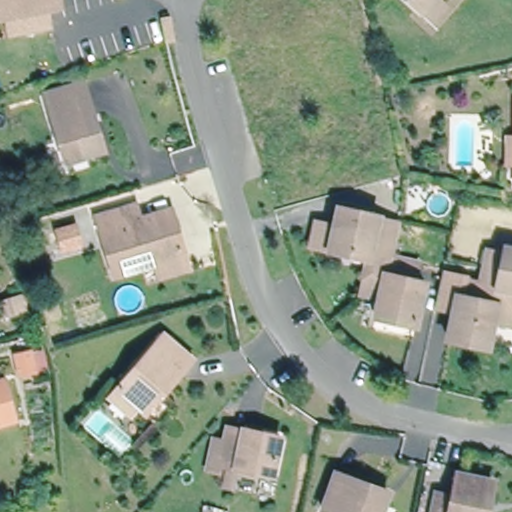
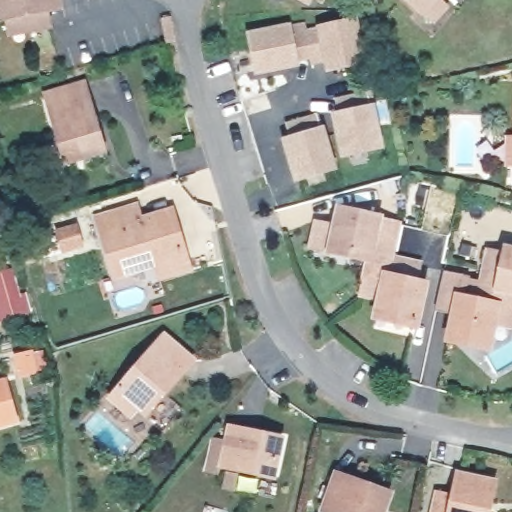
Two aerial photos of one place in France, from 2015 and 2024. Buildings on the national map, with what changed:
unchanged [(6,15),(0,16),(0,0),(58,0),(60,7),(44,9),(47,24),(9,30),(6,15)]
new [(311,6),(300,0),(314,0),(311,6)]
unchanged [(437,22),(427,12),(414,0),(444,0),(451,7),(437,22)]
new [(368,65),(328,73),(326,60),(301,66),(257,75),(246,33),(291,23),(292,24),(306,21),(308,29),(317,24),(360,17),(368,65)]
unchanged [(72,163),(57,111),(52,94),(89,83),(94,100),(109,152),(72,163)]
new [(376,104),(386,148),(342,156),(332,112),(340,110),(338,100),(373,92),(376,104)]
new [(339,171),(295,183),(283,139),(326,126),(339,171)]
unchanged [(512,135),(512,161),(510,161),(510,135),(512,135)]
unchanged [(158,272),(153,257),(146,260),(115,269),(97,211),(136,198),(141,213),(171,204),(183,243),(189,262),(158,272)]
unchanged [(382,313),(386,297),(366,293),(374,259),(338,251),(338,256),(328,254),(308,250),(314,219),(332,223),(336,204),(348,207),(387,216),(386,219),(405,223),(398,258),(426,265),(422,281),(430,283),(421,322),(420,326),(381,317),(382,313)]
unchanged [(460,312),(441,308),(449,270),(473,276),(472,281),(487,284),(494,251),(510,255),(511,250),(512,250),(512,326),(499,323),(494,344),(493,348),(454,339),(455,335),(460,312)]
new [(27,293),(32,312),(0,321),(0,271),(8,269),(15,296),(27,293)]
unchanged [(119,392),(128,383),(178,334),(204,360),(153,409),(145,401),(136,410),(119,392)]
unchanged [(31,346),(36,366),(17,371),(12,350),(31,346)]
unchanged [(7,373),(23,420),(0,427),(0,375),(7,373)]
unchanged [(220,467),(226,438),(239,441),(242,426),(262,431),(263,426),(273,427),(272,432),(294,437),(287,475),(234,464),(233,470),(220,467)]
unchanged [(459,493),(463,471),(499,479),(492,512),(439,512),(444,490),(459,493)]
unchanged [(389,512),(341,512),(332,509),(344,473),(396,490),(389,512)]
unchanged [(270,486),(268,494),(254,491),(256,484),(270,486)]

